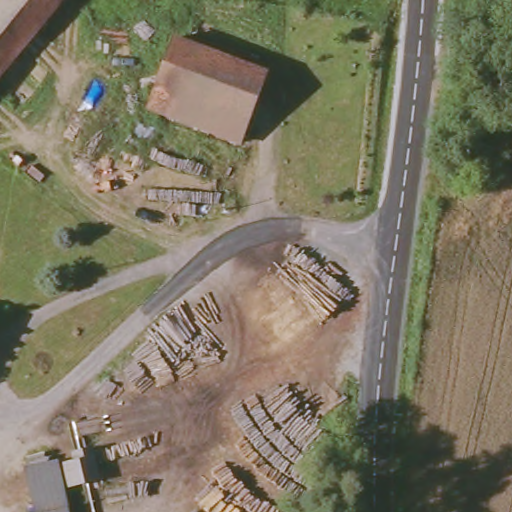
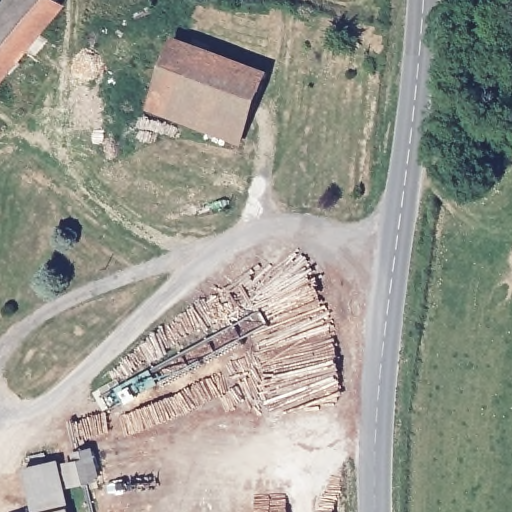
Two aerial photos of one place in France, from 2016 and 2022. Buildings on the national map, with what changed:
unchanged [(0,73),(0,0),(58,0),(0,73)]
unchanged [(262,64),(233,136),(145,102),(174,32),(262,64)]
unchanged [(65,480),(62,461),(73,460),(71,448),(87,445),(89,456),(92,475),(65,480)]
unchanged [(50,460),(62,510),(66,510),(66,512),(29,512),(20,466),(50,460)]

